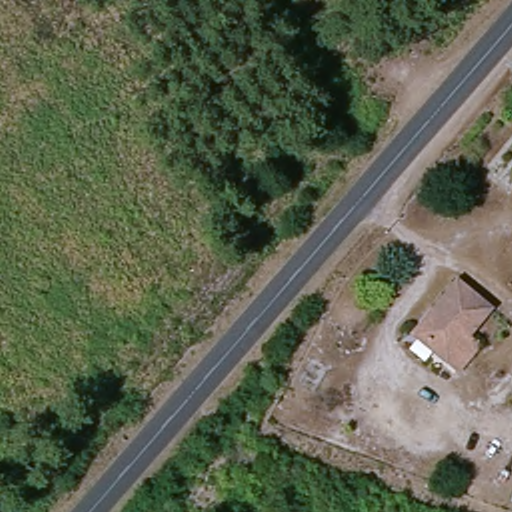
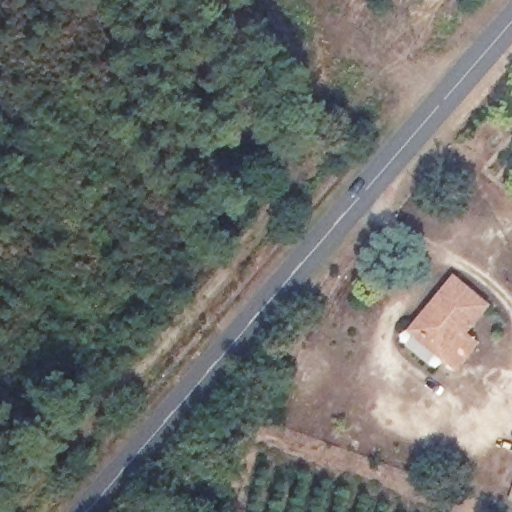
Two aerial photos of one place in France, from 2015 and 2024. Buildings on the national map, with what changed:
unchanged [(415,330),(463,278),(492,305),(469,330),(481,343),(455,370),(415,330)]

